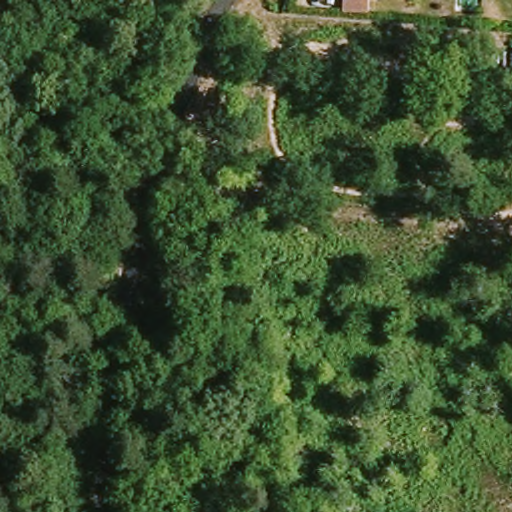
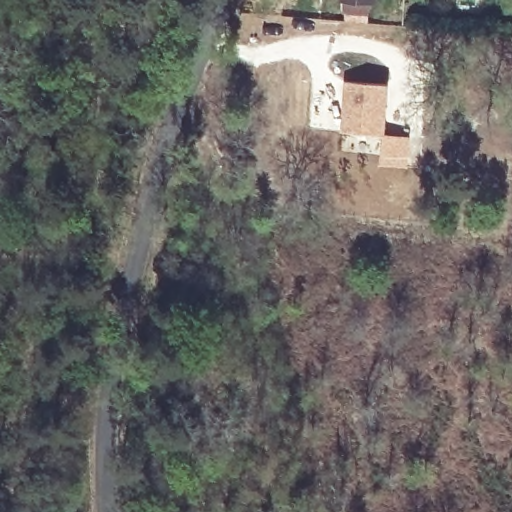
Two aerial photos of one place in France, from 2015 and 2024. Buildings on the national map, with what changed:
unchanged [(377,4),(342,1),(342,0),(377,0),(377,1),(377,4)]
new [(342,82),(382,85),(380,135),(340,133),(342,82)]

